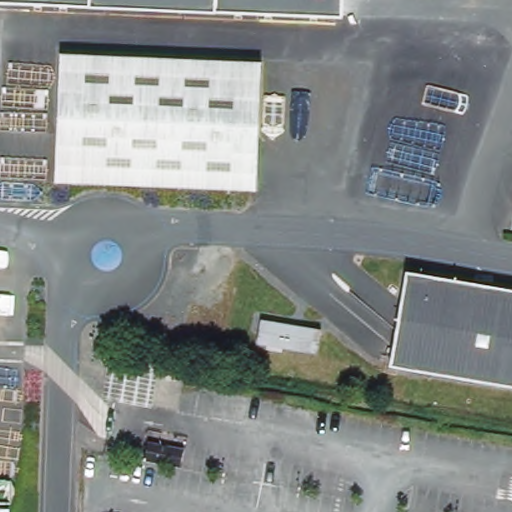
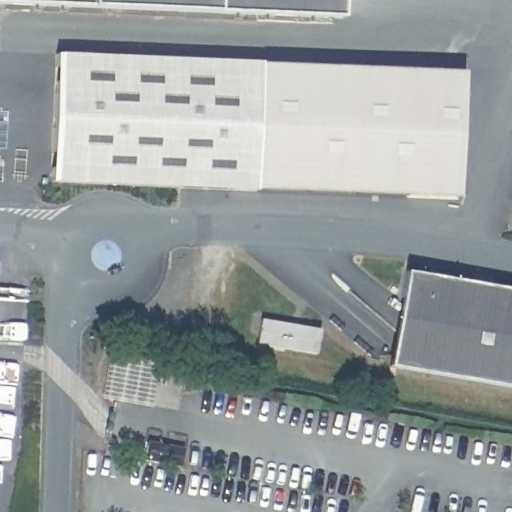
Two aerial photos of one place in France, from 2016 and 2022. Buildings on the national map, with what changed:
unchanged [(342,17),(50,9),(0,7),(0,0),(343,0),(342,17)]
unchanged [(51,55),(259,59),(252,192),(42,188),(51,55)]
new [(259,63),(459,70),(454,194),(252,187),(259,63)]
unchanged [(512,288),(512,386),(482,380),(416,368),(413,383),(384,377),(387,363),(405,268),(495,285),(512,288)]
unchanged [(313,339),(308,364),(249,353),(253,328),(313,339)]
unchanged [(157,365),(149,407),(100,398),(106,357),(157,365)]

